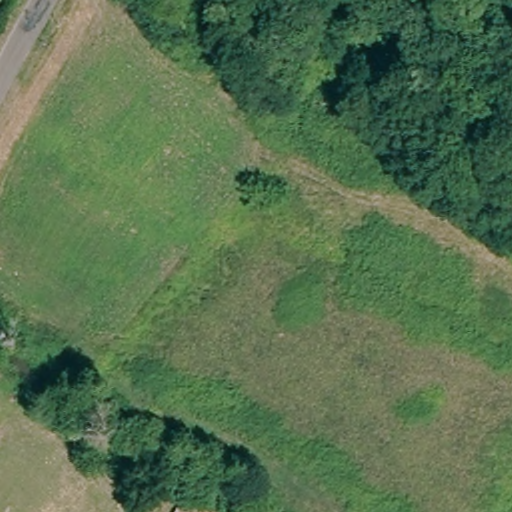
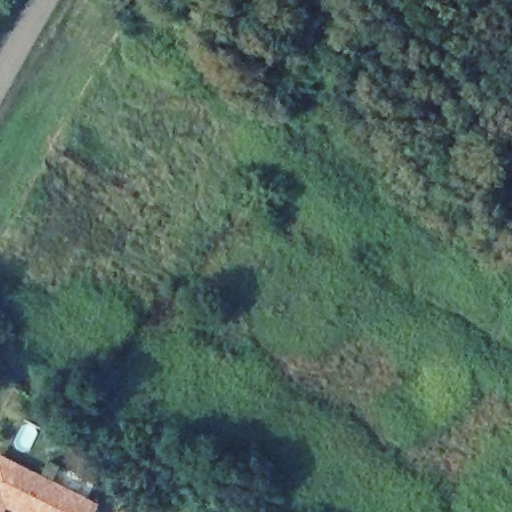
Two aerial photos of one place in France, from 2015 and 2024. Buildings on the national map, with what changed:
new [(0,506),(21,466),(41,477),(49,462),(60,468),(53,482),(100,505),(96,512),(10,512),(0,507),(0,506)]

